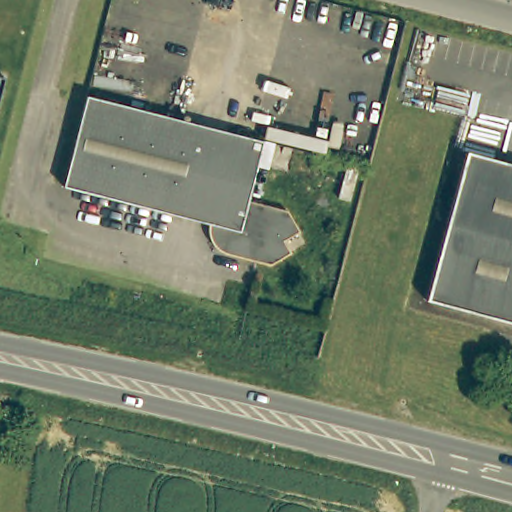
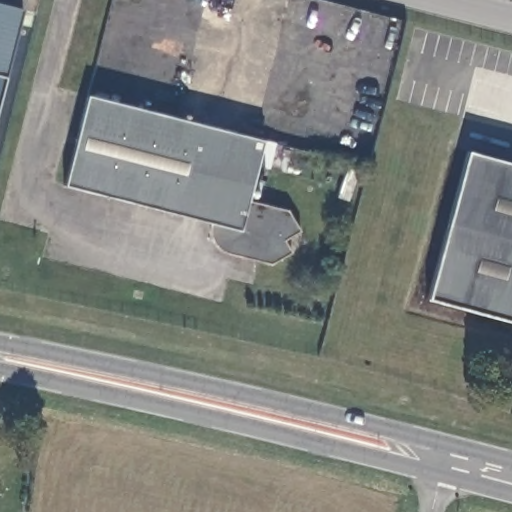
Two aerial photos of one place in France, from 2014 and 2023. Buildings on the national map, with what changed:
new [(0,77),(0,4),(22,10),(4,78),(0,77)]
unchanged [(4,78),(0,91),(0,77),(4,78)]
unchanged [(293,215),(305,237),(290,246),(297,258),(276,270),(232,259),(231,259),(229,258),(227,257),(225,256),(224,255),(222,253),(221,252),(220,250),(219,249),(217,246),(216,244),(215,240),(215,238),(215,236),(215,234),(215,232),(215,230),(70,192),(92,101),(270,146),(281,149),(275,175),(262,171),(254,205),(293,215)]
unchanged [(512,322),(432,301),(472,151),(512,162),(512,322)]

